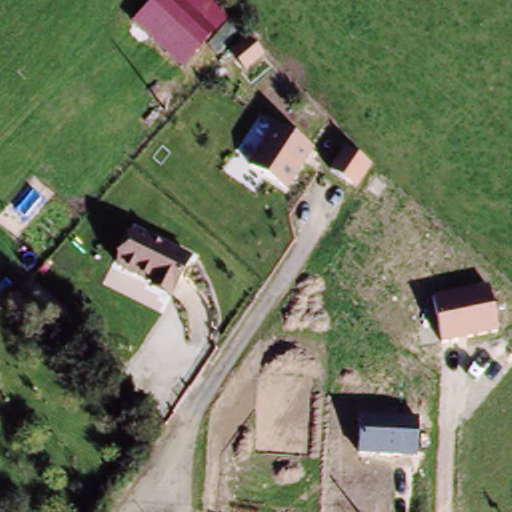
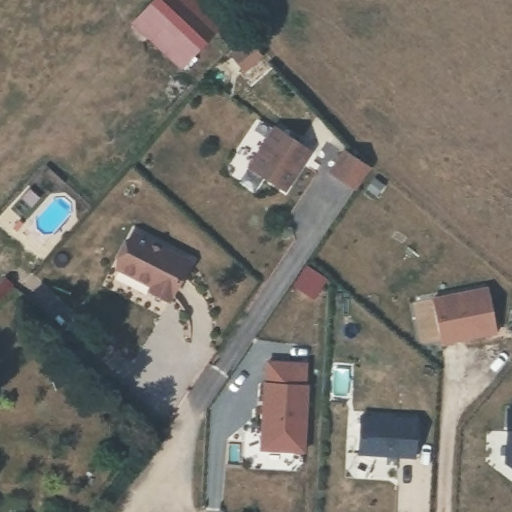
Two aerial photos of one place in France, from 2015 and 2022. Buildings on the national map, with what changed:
unchanged [(205,69),(146,10),(158,0),(203,0),(238,36),(205,69)]
unchanged [(290,194),(260,173),(283,130),(317,155),(290,194)]
unchanged [(355,190),(328,171),(345,147),(371,166),(355,190)]
unchanged [(175,303),(116,268),(140,231),(200,262),(175,303)]
unchanged [(441,342),(432,297),(488,286),(497,333),(441,342)]
new [(267,361),(310,361),(310,385),(306,453),(263,451),(266,383),(267,361)]
new [(508,409),(512,409),(512,457),(507,457),(508,409)]
unchanged [(358,454),(360,417),(418,420),(416,459),(358,454)]

